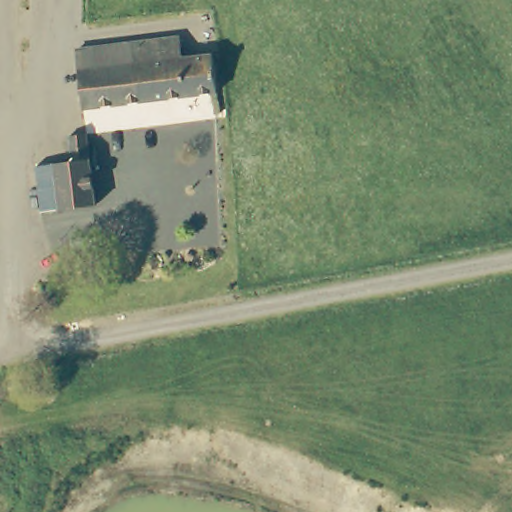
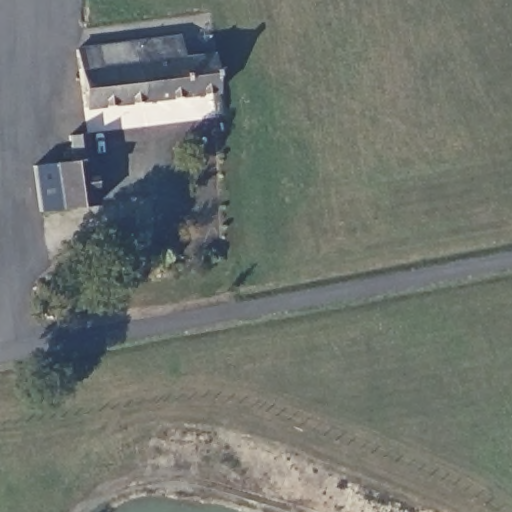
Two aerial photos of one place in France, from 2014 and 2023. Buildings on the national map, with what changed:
unchanged [(84,111),(75,51),(170,38),(180,37),(184,59),(212,55),(218,94),(84,111)]
unchanged [(35,165),(54,162),(71,160),(70,137),(86,135),(96,206),(60,212),(41,215),(35,165)]
unchanged [(70,372),(59,375),(55,361),(68,358),(70,372)]

